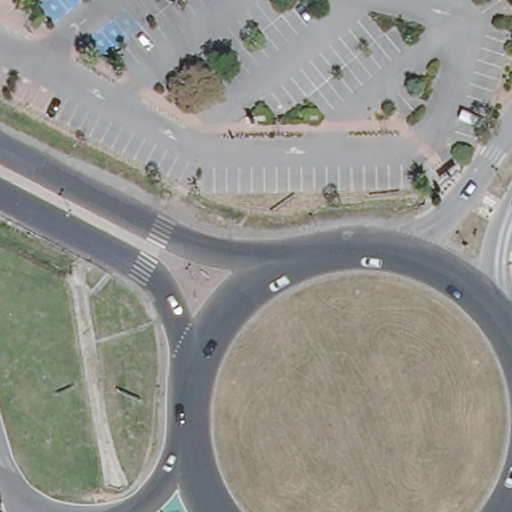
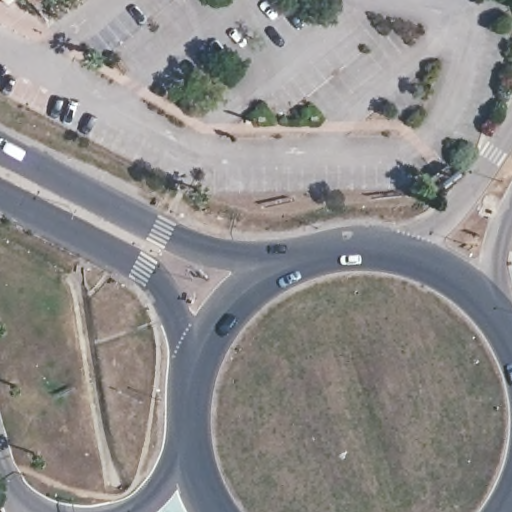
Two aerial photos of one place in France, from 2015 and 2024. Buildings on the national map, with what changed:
[]

